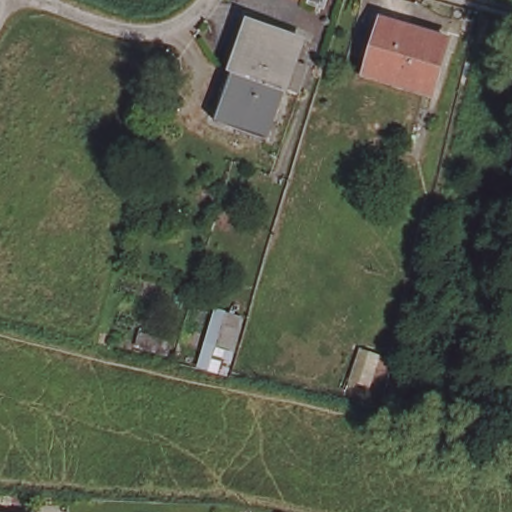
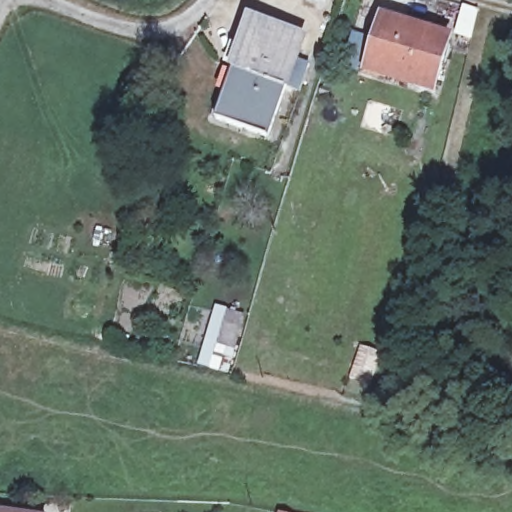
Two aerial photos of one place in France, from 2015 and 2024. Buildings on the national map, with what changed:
unchanged [(250,14),(302,30),(286,82),(233,67),(250,14)]
unchanged [(382,22),(447,39),(435,90),(410,83),(369,73),(382,22)]
unchanged [(286,82),(269,132),(217,116),(233,67),(286,82)]
unchanged [(195,367),(214,302),(244,311),(225,376),(195,367)]
unchanged [(0,512),(0,509),(23,512),(0,512)]

